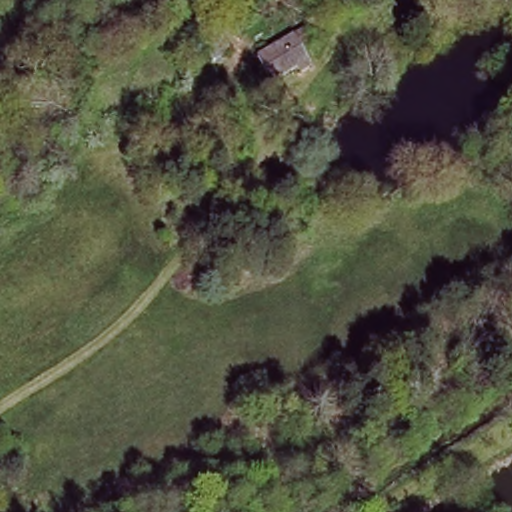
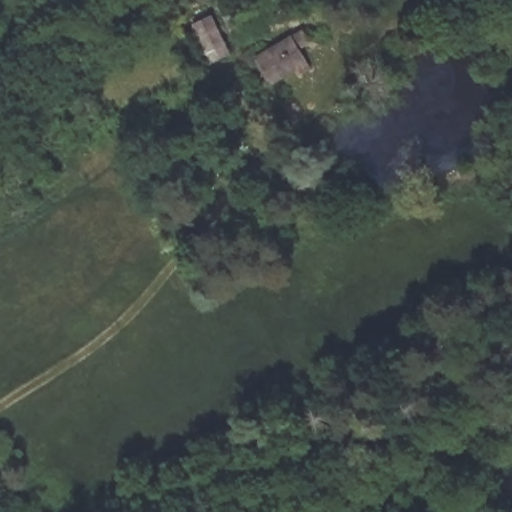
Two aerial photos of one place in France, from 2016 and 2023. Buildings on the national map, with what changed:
unchanged [(212,2),(232,55),(212,63),(195,20),(205,16),(201,8),(198,0),(211,0),(212,2)]
unchanged [(303,42),(295,46),(302,59),(268,77),(255,52),(297,30),(303,42)]

